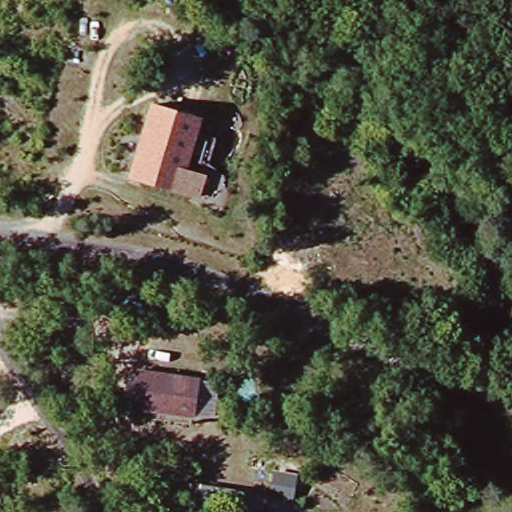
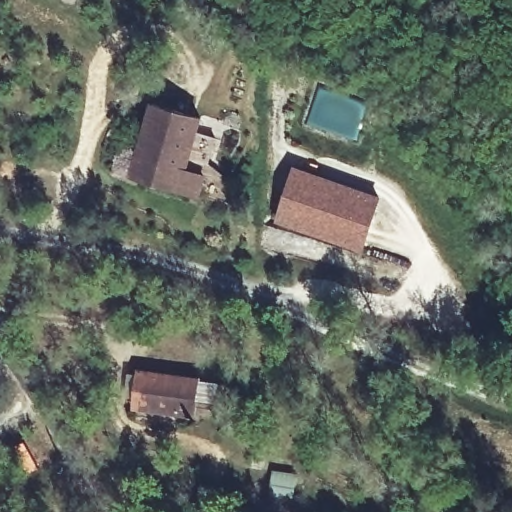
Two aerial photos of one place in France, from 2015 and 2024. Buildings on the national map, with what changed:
unchanged [(202,115),(198,130),(217,135),(198,195),(133,171),(150,105),(202,115)]
new [(382,195),(363,253),(275,223),(294,166),(382,195)]
unchanged [(134,412),(137,375),(197,381),(194,418),(134,412)]
unchanged [(300,471),(297,496),(270,492),(272,468),(300,471)]

